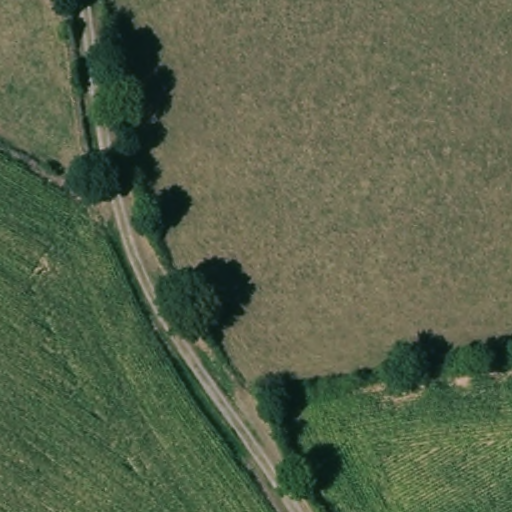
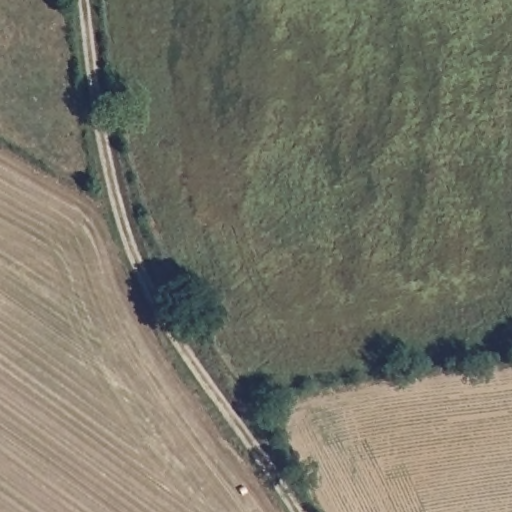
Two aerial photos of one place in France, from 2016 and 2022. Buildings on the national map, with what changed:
[]

